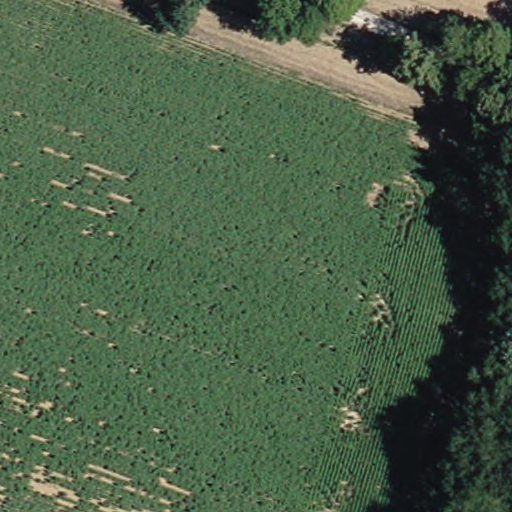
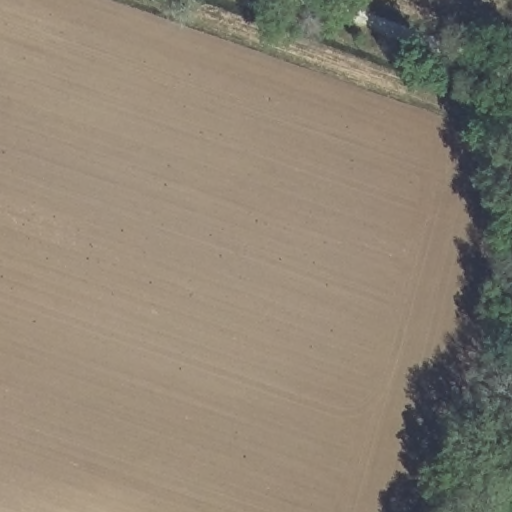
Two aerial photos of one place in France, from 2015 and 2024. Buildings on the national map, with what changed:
[]

